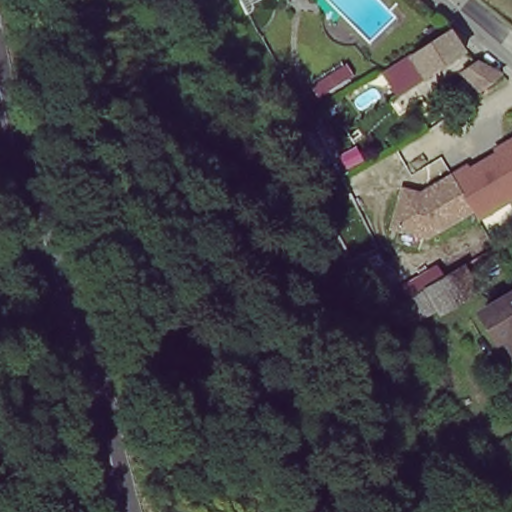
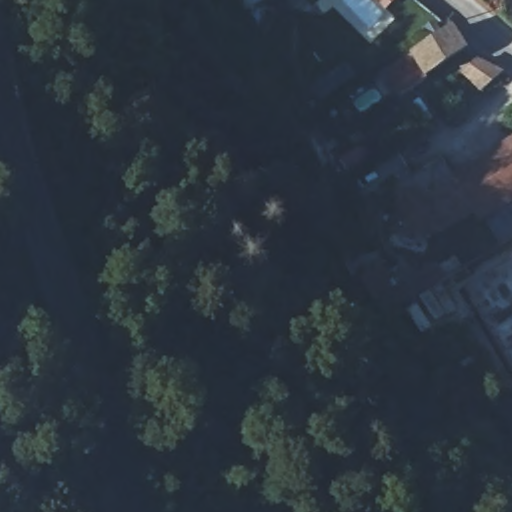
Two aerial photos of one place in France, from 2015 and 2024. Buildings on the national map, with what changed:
unchanged [(252,17),(247,25),(236,0),(266,0),(252,7),(252,17)]
unchanged [(453,30),(466,51),(428,74),(417,57),(411,61),(408,56),(453,30)]
unchanged [(467,70),(482,59),(505,72),(481,90),(467,70)]
unchanged [(457,177),(512,142),(512,200),(479,222),(457,177)]
unchanged [(435,248),(390,236),(397,190),(425,197),(457,177),(479,222),(435,248)]
unchanged [(357,278),(383,264),(393,281),(457,247),(485,285),(410,325),(402,310),(383,317),(357,278)]
unchanged [(508,352),(505,354),(496,339),(493,341),(487,330),(483,332),(468,309),(512,282),(512,359),(508,352)]

